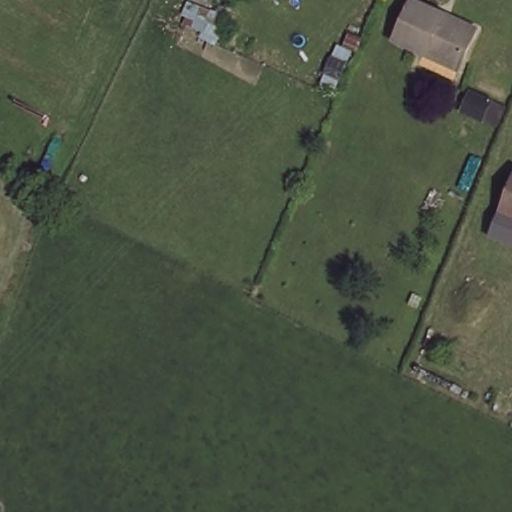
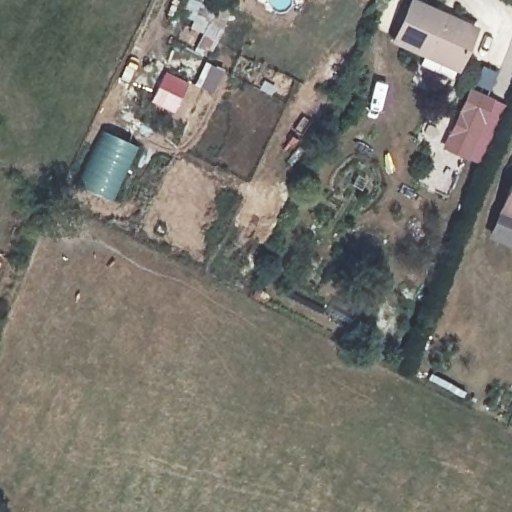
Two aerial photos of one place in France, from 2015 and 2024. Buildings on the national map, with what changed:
unchanged [(460,59),(431,45),(426,52),(393,36),(411,0),(421,0),(476,28),(460,59)]
new [(504,110),(480,163),(443,144),(467,92),(504,110)]
new [(102,129),(138,145),(113,199),(77,183),(102,129)]
unchanged [(512,182),(512,217),(501,213),(512,182)]

